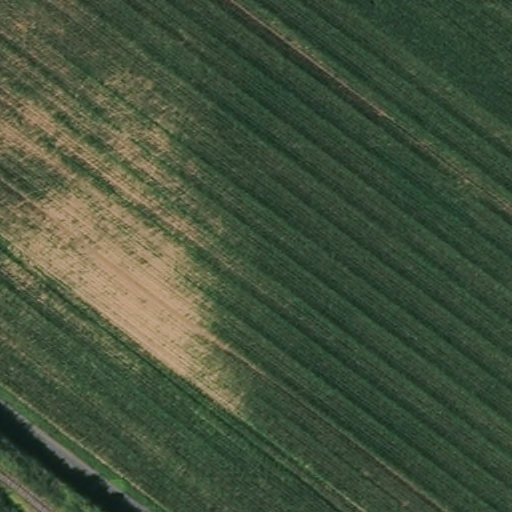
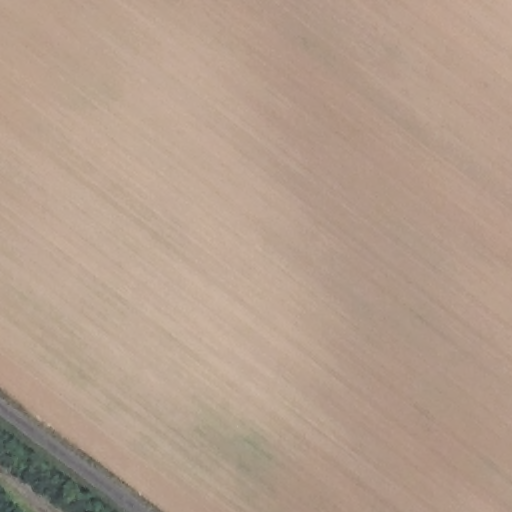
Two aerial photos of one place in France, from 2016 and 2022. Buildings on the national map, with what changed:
[]

